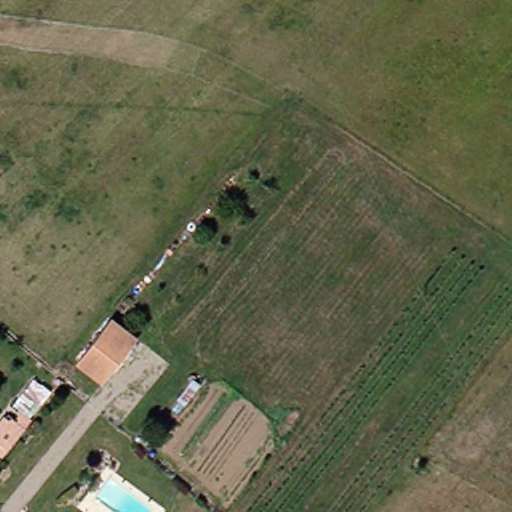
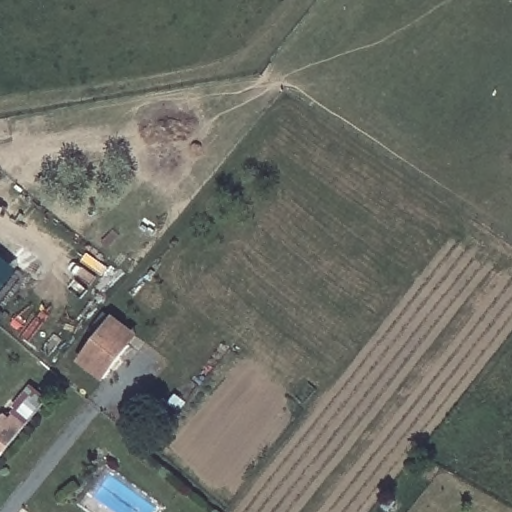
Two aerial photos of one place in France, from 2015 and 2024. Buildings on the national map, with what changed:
new [(0,293),(0,253),(19,269),(0,293)]
unchanged [(104,326),(110,318),(137,337),(130,345),(105,379),(78,361),(104,326)]
unchanged [(0,466),(0,439),(12,449),(0,466)]

